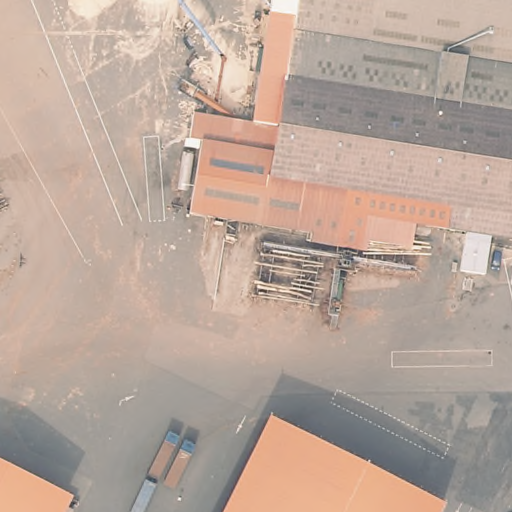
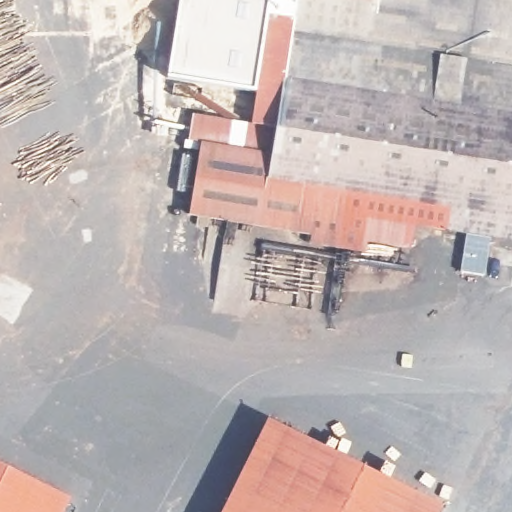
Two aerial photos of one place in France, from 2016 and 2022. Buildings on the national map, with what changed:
new [(256,91),(166,77),(178,0),(272,0),(256,91)]
unchanged [(444,225),(365,210),(357,251),(304,239),(306,231),(188,210),(199,140),(187,138),(191,113),(251,123),(272,0),(512,0),(512,215),(447,204),(444,225)]
unchanged [(512,215),(512,236),(444,225),(447,204),(512,215)]
unchanged [(440,242),(416,236),(411,260),(357,251),(365,210),(444,225),(440,242)]
unchanged [(435,512),(239,512),(281,426),(438,505),(435,512)]
unchanged [(59,495),(50,512),(0,512),(0,465),(59,495)]

